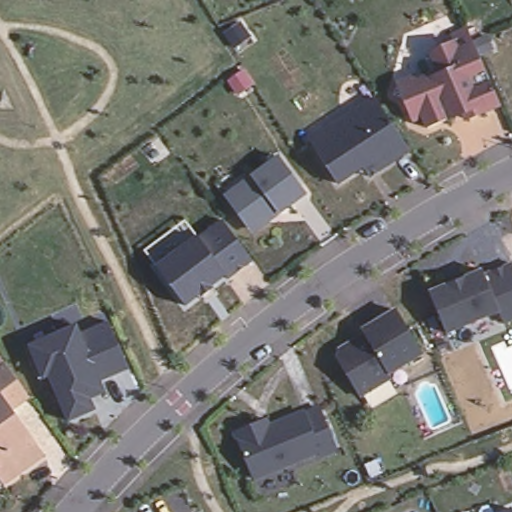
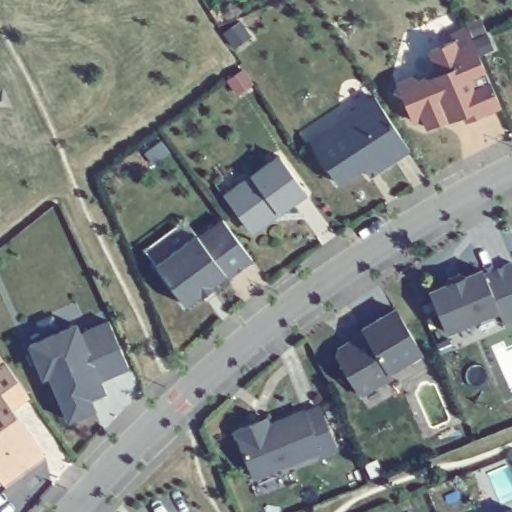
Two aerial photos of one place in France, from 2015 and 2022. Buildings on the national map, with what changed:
unchanged [(412,116),(402,94),(395,90),(398,81),(397,80),(437,63),(430,46),(454,36),(452,31),(467,24),(470,31),(471,34),(500,101),(467,114),(462,103),(451,108),(453,112),(427,123),(422,111),(412,116)]
unchanged [(367,162),(342,178),(315,136),(380,94),(414,145),(382,166),(375,172),(367,162)]
unchanged [(305,193),(278,213),(275,209),(270,213),(268,220),(255,230),(248,229),(225,197),(278,156),(305,193)]
unchanged [(148,251),(190,220),(202,236),(160,267),(148,251)]
unchanged [(202,236),(203,239),(227,221),(257,261),(232,279),(230,276),(215,286),(217,288),(207,296),(205,294),(190,306),(160,267),(202,236)]
unchanged [(448,279),(458,275),(465,277),(482,271),(484,275),(512,264),(512,265),(512,320),(503,324),(497,312),(445,333),(428,293),(445,286),(448,279)]
unchanged [(422,353),(389,372),(392,377),(360,396),(337,357),(338,350),(355,340),(357,342),(366,337),(362,330),(396,310),(422,353)]
unchanged [(89,399),(94,410),(68,421),(48,376),(42,379),(28,347),(75,326),(79,335),(108,323),(128,368),(99,381),(104,392),(89,399)]
unchanged [(32,396),(14,409),(43,449),(2,479),(0,476),(0,363),(5,360),(32,396)]
unchanged [(265,420),(268,427),(303,412),(304,414),(319,408),(336,450),(320,456),(318,452),(253,479),(234,432),(257,423),(265,420)]
unchanged [(512,510),(512,512),(506,512),(512,510)]

